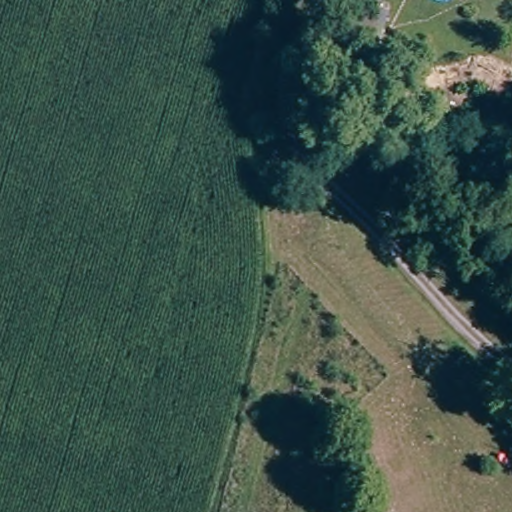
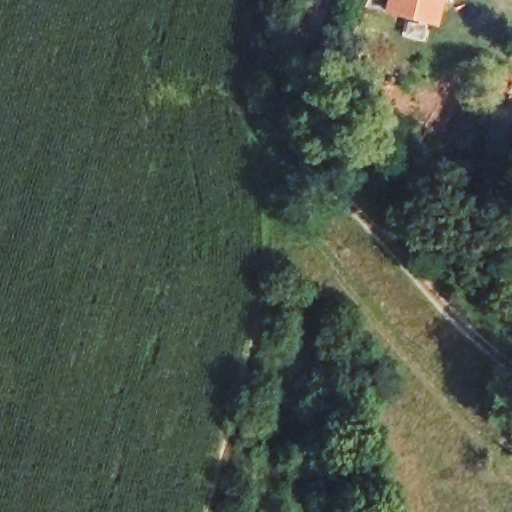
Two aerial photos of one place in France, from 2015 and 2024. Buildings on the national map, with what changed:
new [(438,27),(384,13),(387,0),(445,0),(438,27)]

